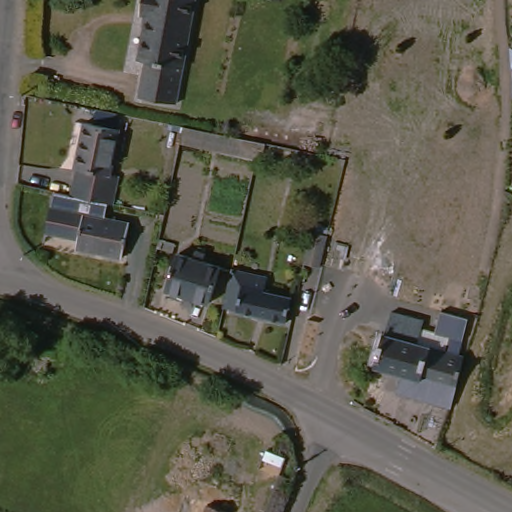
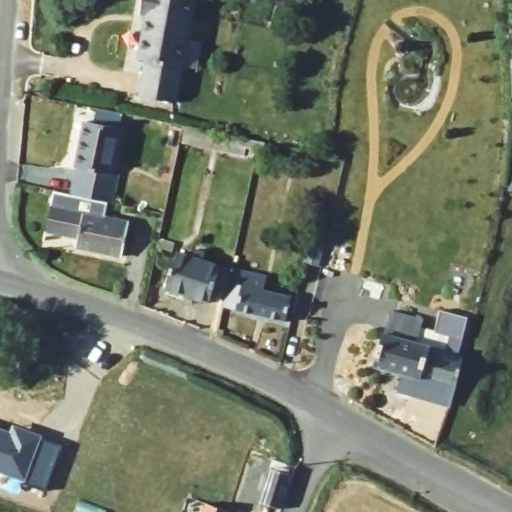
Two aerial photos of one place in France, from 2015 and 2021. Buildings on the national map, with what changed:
unchanged [(143,102),(147,69),(139,67),(145,20),(134,18),(136,0),(190,0),(181,107),(143,102)]
unchanged [(110,185),(108,207),(74,202),(68,201),(69,174),(72,174),(76,127),(115,132),(110,185)]
unchanged [(263,153),(262,162),(187,149),(190,129),(265,144),(275,146),(274,155),(263,153)]
unchanged [(75,217),(71,242),(46,235),(53,198),(68,201),(74,202),(108,207),(106,222),(75,217)]
unchanged [(127,226),(121,261),(70,252),(75,217),(127,226)]
unchanged [(173,260),(185,265),(189,254),(205,258),(201,268),(214,275),(202,309),(160,293),(173,260)]
unchanged [(262,282),(260,297),(281,305),(277,328),(218,315),(224,275),(262,282)]
unchanged [(395,398),(400,377),(373,371),(380,337),(385,337),(390,313),(420,320),(418,327),(435,332),(441,314),(467,320),(462,352),(452,409),(451,413),(395,398)]
new [(18,437),(21,430),(41,437),(41,439),(63,447),(47,492),(23,484),(24,481),(0,473),(0,431),(18,437)]
unchanged [(200,512),(201,508),(213,512),(200,512)]

